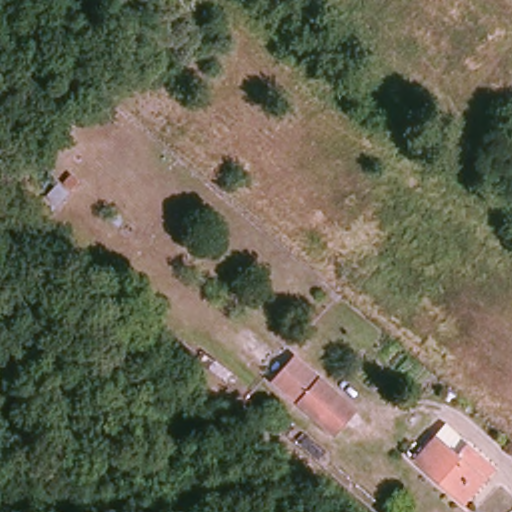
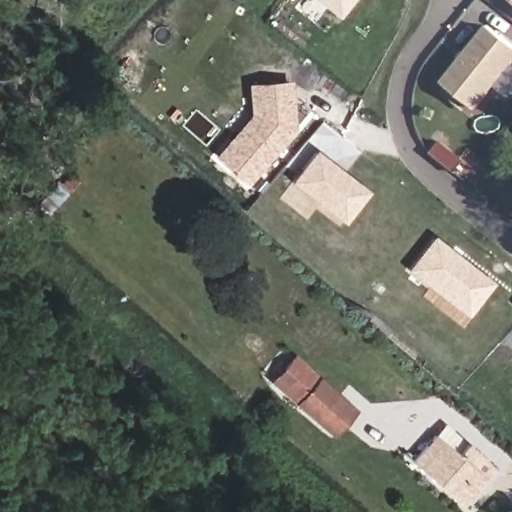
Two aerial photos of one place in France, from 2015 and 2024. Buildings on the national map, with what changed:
new [(315,0),(350,0),(336,16),(315,0)]
new [(512,0),(512,1),(511,0),(512,0)]
new [(486,30),(512,50),(512,64),(473,112),(441,85),(486,30)]
new [(248,115),(247,85),(292,80),(293,130),(245,185),(213,155),(248,115)]
new [(370,192),(344,224),(288,181),(315,150),(370,192)]
new [(493,284),(467,318),(407,270),(433,235),(493,284)]
unchanged [(337,440),(280,391),(300,366),(360,416),(337,440)]
unchanged [(466,507),(414,461),(436,437),(447,425),(471,446),(500,472),(466,507)]

